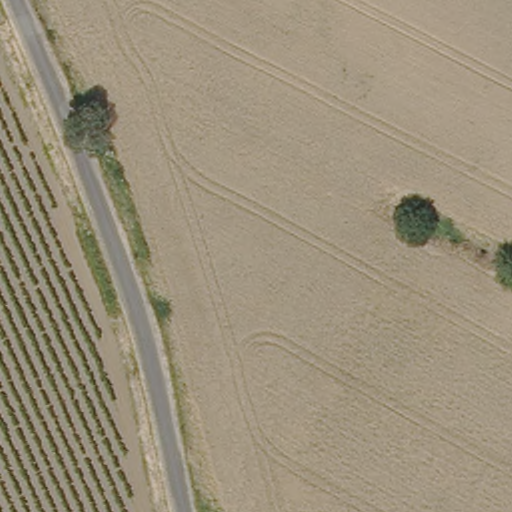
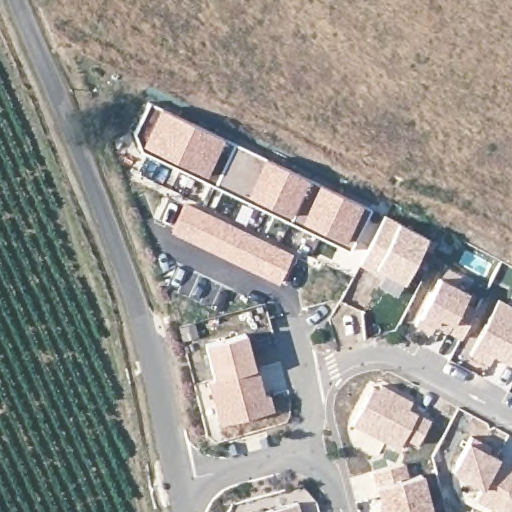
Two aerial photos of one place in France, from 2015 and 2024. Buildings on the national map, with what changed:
new [(370,208),(348,249),(142,150),(135,131),(150,101),(370,208)]
new [(185,202),(293,254),(278,284),(170,233),(185,202)]
new [(375,267),(360,260),(386,212),(428,234),(405,278),(387,268),(377,263),(375,267)]
new [(470,289),(464,298),(478,306),(462,335),(436,321),(432,329),(416,321),(441,273),(470,289)]
new [(494,351),(490,360),(471,350),(501,294),(512,300),(512,361),(494,351)]
new [(248,333),(256,367),(259,367),(266,396),(270,395),(274,410),(218,423),(207,380),(214,379),(203,345),(248,333)]
new [(405,435),(399,446),(353,421),(373,384),(379,387),(381,382),(412,399),(408,406),(431,418),(418,442),(405,435)]
new [(512,464),(512,512),(496,512),(475,499),(479,488),(451,472),(467,440),(512,464)]
new [(407,461),(411,476),(425,472),(435,510),(425,512),(389,512),(378,469),(407,461)]
new [(298,503),(301,512),(262,512),(298,503)]

